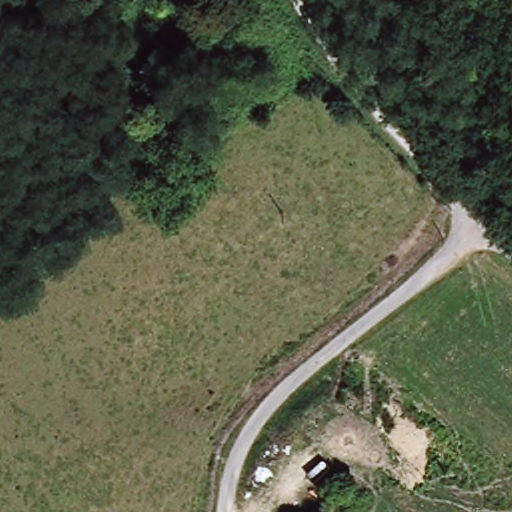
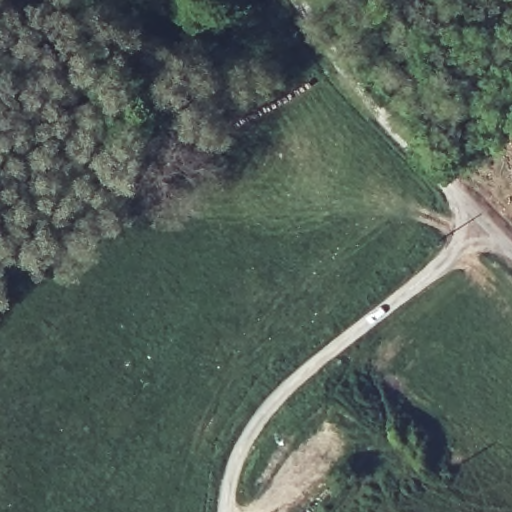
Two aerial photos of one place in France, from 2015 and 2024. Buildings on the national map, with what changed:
unchanged [(135,24),(112,41),(112,39),(101,0),(128,0),(135,24)]
unchanged [(167,37),(129,65),(112,41),(135,24),(151,14),(167,37)]

